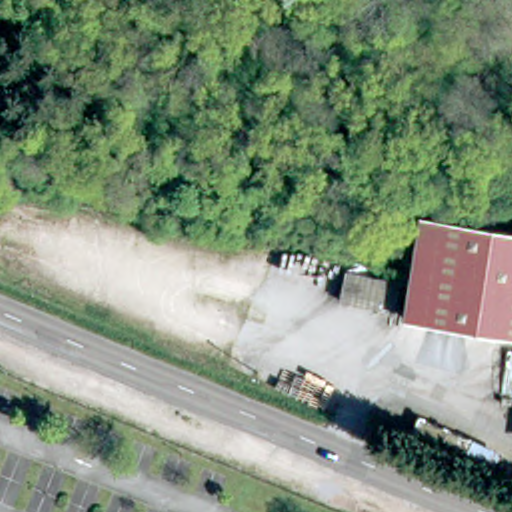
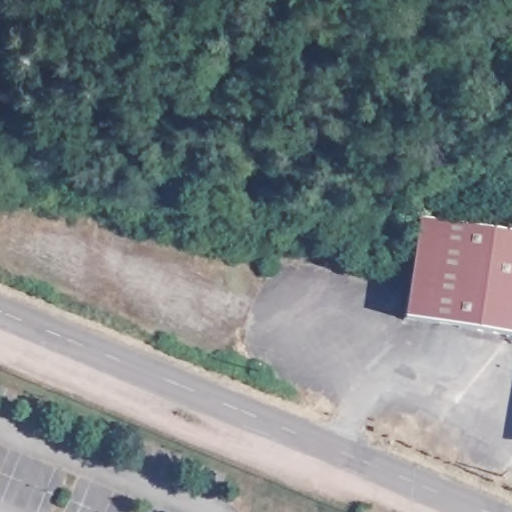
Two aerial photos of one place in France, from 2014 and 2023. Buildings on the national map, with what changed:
unchanged [(404,321),(421,220),(422,220),(512,235),(512,338),(405,321),(404,321)]

